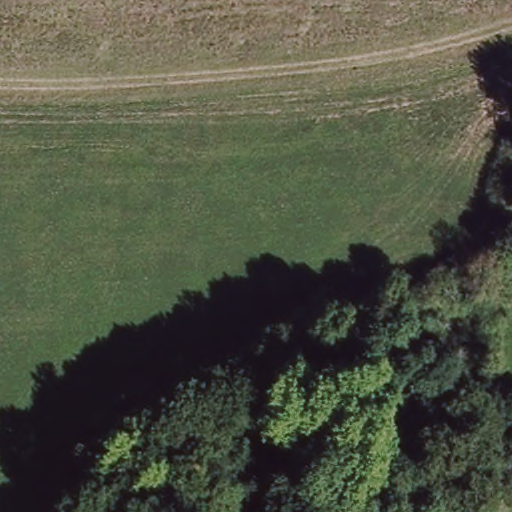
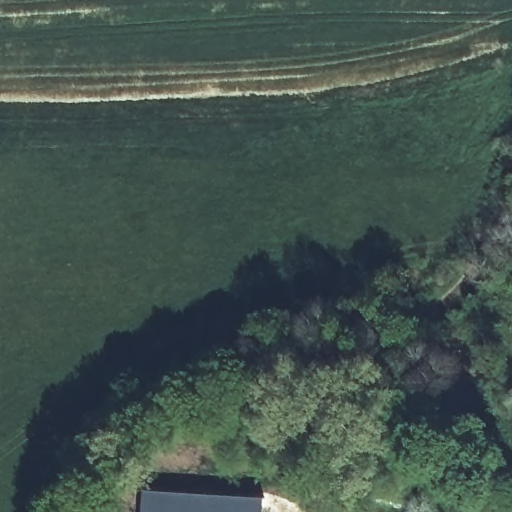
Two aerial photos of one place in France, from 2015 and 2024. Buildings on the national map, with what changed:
new [(265,496),(264,512),(141,512),(144,488),(265,496)]

